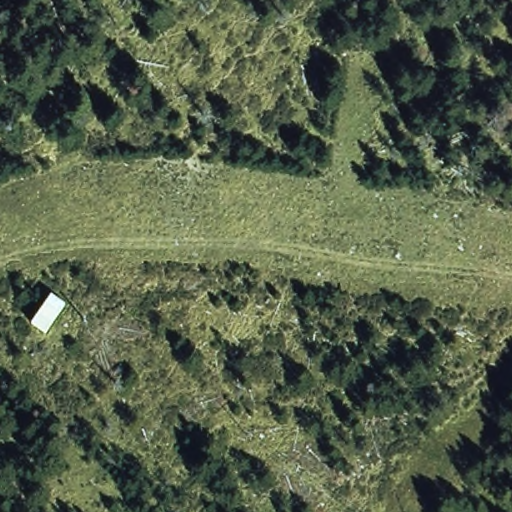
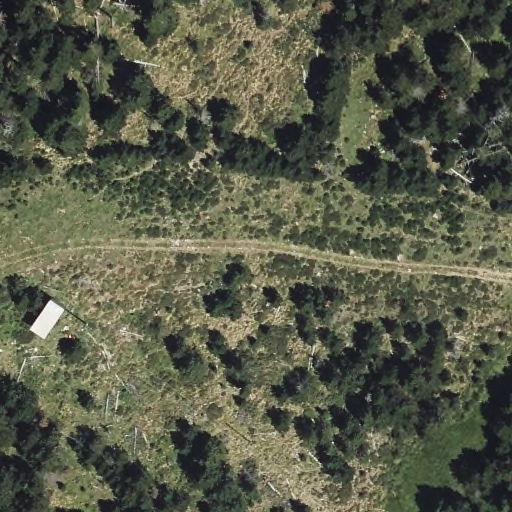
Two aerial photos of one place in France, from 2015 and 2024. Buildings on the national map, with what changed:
unchanged [(49,298),(65,312),(43,341),(27,328),(49,298)]

